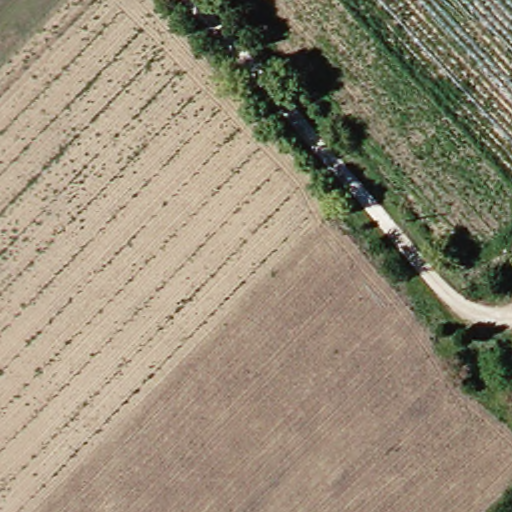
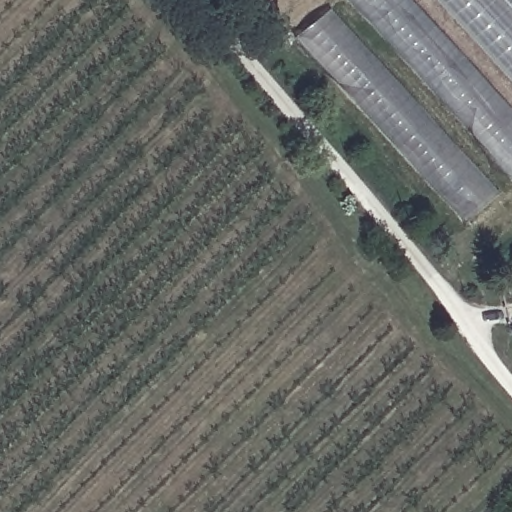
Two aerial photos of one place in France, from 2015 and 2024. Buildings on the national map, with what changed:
new [(353,0),(412,0),(512,113),(512,175),(353,0)]
new [(434,0),(512,0),(512,85),(434,0)]
new [(466,224),(297,39),(331,10),(498,194),(466,224)]

